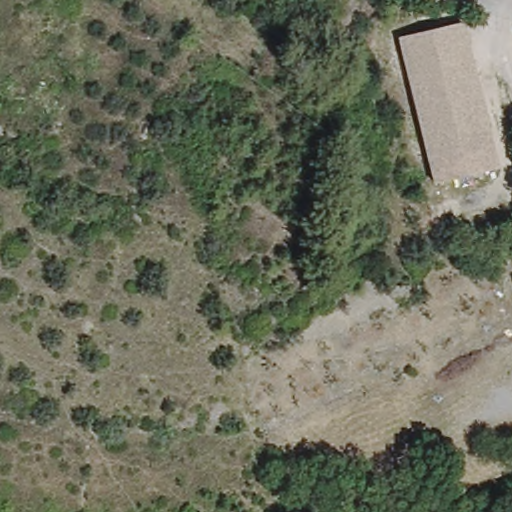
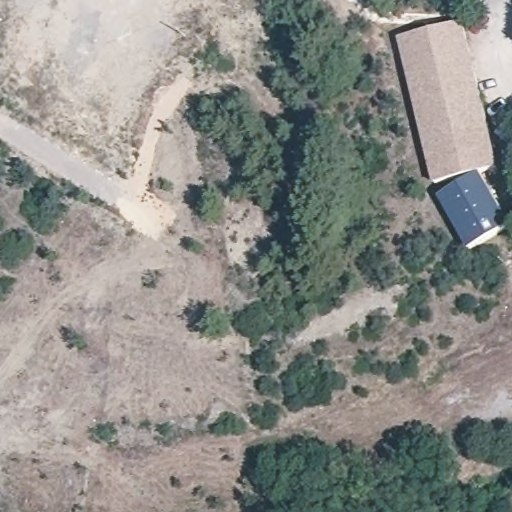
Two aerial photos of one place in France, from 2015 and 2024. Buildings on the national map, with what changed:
unchanged [(500,164),(436,177),(402,35),(465,20),(500,164)]
new [(512,227),(470,251),(438,196),(480,173),(512,226),(512,227)]

